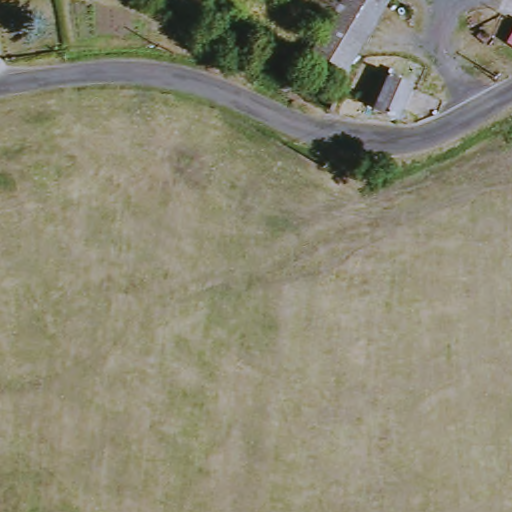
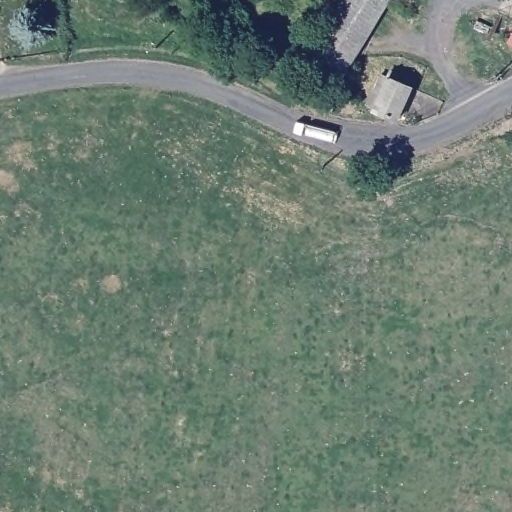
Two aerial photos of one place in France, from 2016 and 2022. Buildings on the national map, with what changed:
unchanged [(393,0),(372,43),(334,23),(345,0),(393,0)]
unchanged [(351,72),(317,54),(334,23),(372,43),(340,110),(334,107),(351,72)]
unchanged [(512,42),(512,47),(510,46),(512,42)]
unchanged [(382,114),(389,98),(381,94),(387,78),(396,81),(399,74),(407,78),(404,85),(419,91),(407,123),(382,114)]

